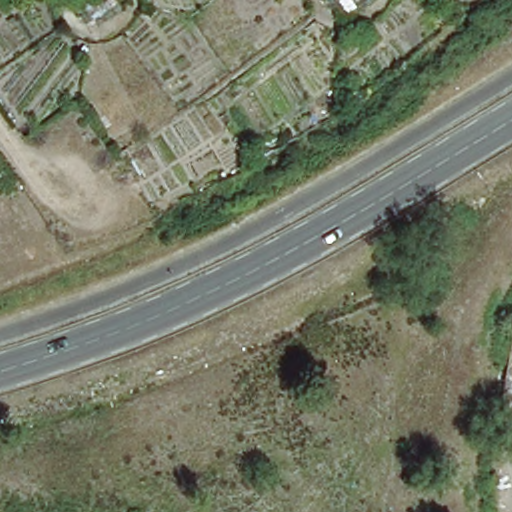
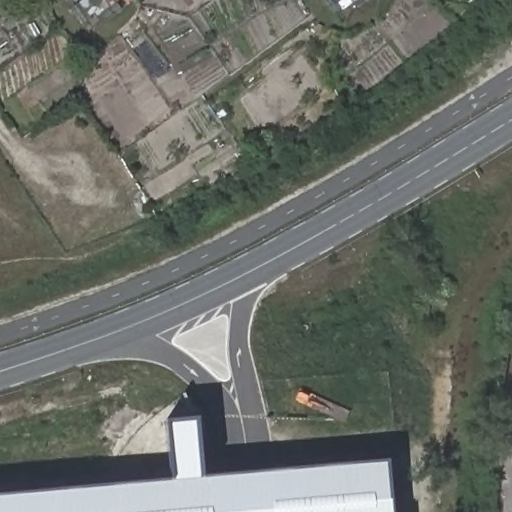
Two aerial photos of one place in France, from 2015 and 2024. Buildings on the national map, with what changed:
unchanged [(118,0),(115,3),(125,11),(103,35),(94,26),(86,34),(68,16),(75,9),(66,1),(67,0),(118,0)]
unchanged [(350,11),(343,20),(325,3),(328,0),(379,0),(360,21),(350,11)]
new [(176,436),(212,433),(216,487),(395,473),(398,512),(0,512),(0,503),(180,489),(176,436)]

